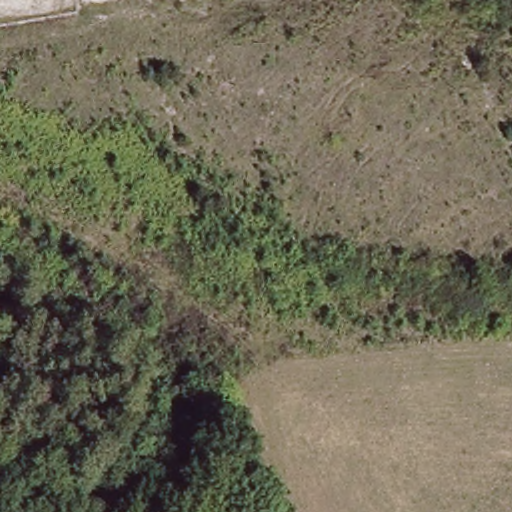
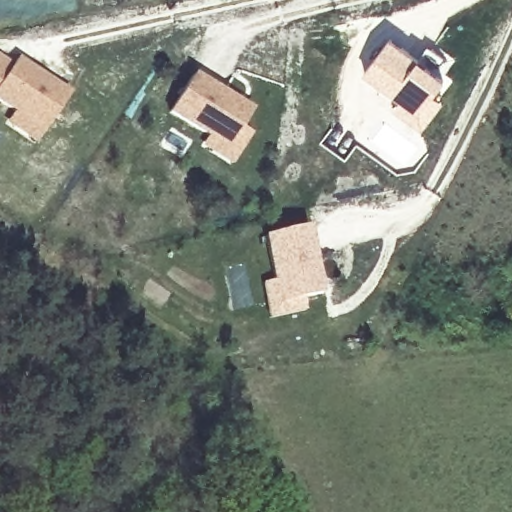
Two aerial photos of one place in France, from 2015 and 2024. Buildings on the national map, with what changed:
new [(391,38),(445,78),(420,113),(365,72),(391,38)]
new [(17,59),(69,94),(46,129),(0,98),(0,55),(13,65),(17,59)]
new [(217,144),(169,113),(191,77),(249,113),(231,141),(226,149),(217,144)]
new [(278,295),(265,238),(307,229),(322,296),(289,302),(280,305),(278,295)]

